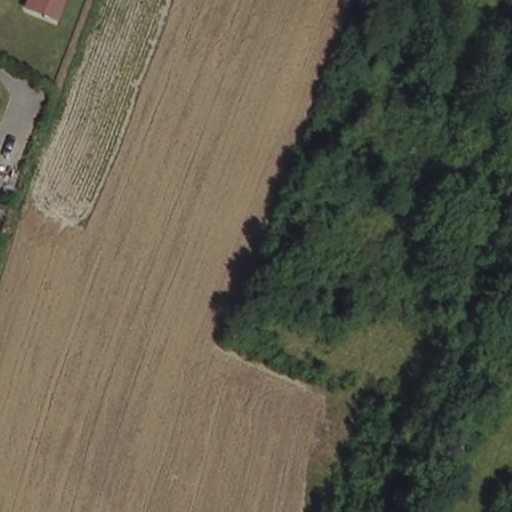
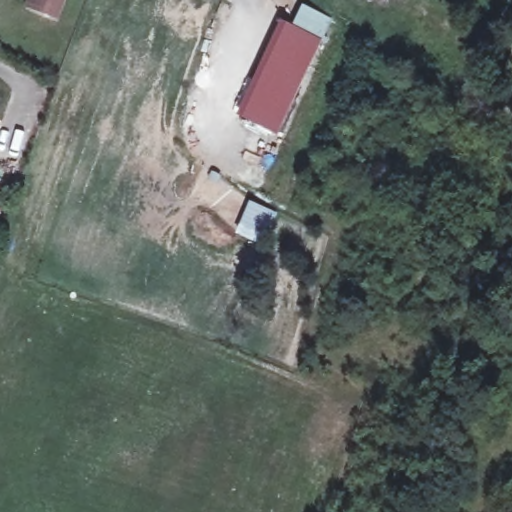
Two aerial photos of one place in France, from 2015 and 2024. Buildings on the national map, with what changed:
unchanged [(32,7),(26,4),(28,0),(63,0),(57,16),(32,7)]
new [(279,20),(321,40),(278,135),(234,115),(279,20)]

